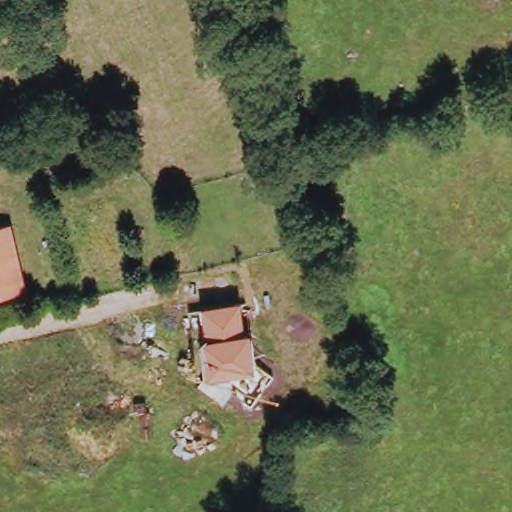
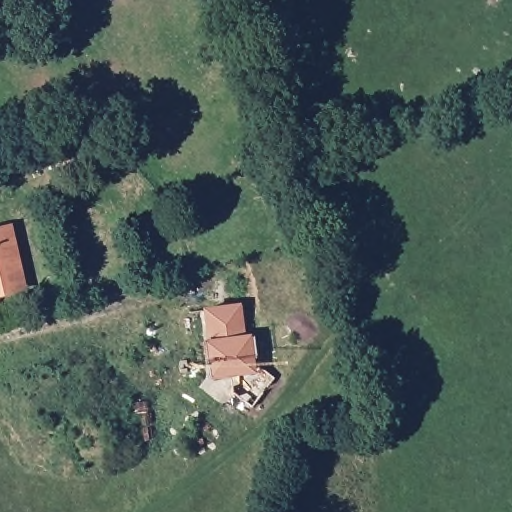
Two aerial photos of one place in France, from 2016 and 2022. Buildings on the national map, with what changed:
unchanged [(26,292),(0,298),(0,230),(10,228),(26,292)]
unchanged [(207,340),(202,308),(238,304),(245,335),(250,334),(252,362),(254,373),(212,379),(203,380),(200,341),(207,340)]
unchanged [(272,377),(250,405),(212,379),(254,373),(252,362),(272,377)]

